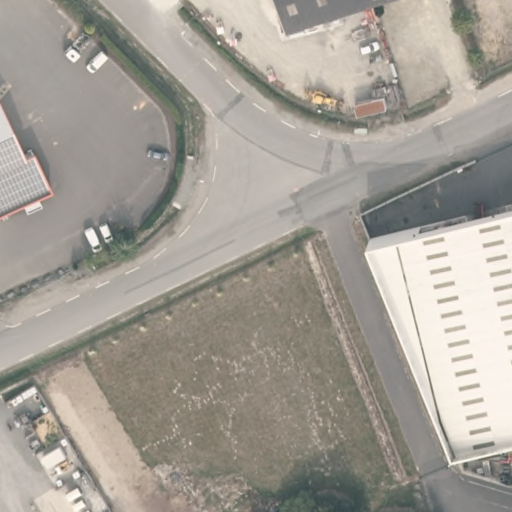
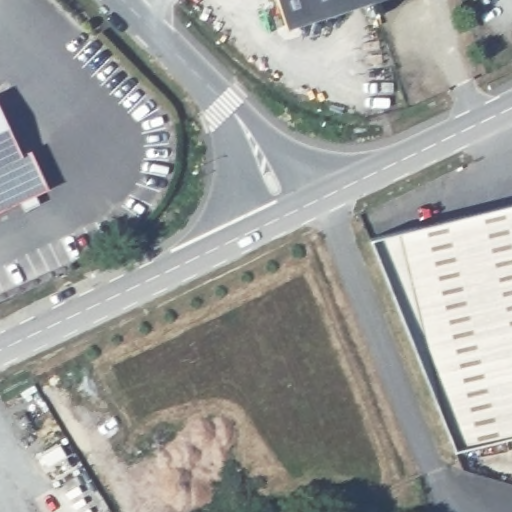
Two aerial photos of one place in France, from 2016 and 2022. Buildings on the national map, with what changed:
unchanged [(288,27),(279,0),(367,0),(367,2),(288,27)]
unchanged [(367,0),(375,0),(367,2),(367,0)]
unchanged [(22,157),(31,154),(49,192),(32,201),(35,207),(26,212),(23,205),(0,215),(0,111),(22,157)]
unchanged [(512,205),(512,436),(452,451),(371,240),(470,215),(512,205)]

